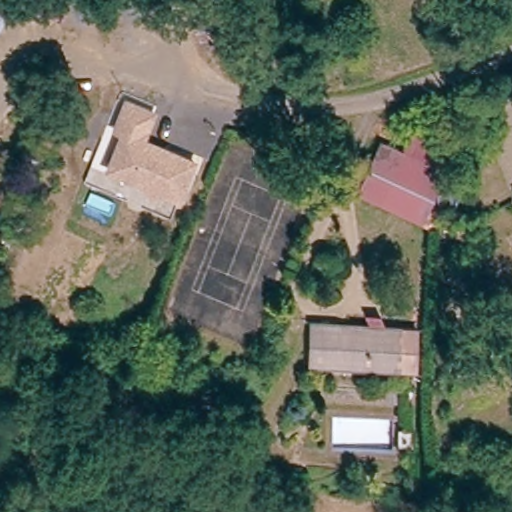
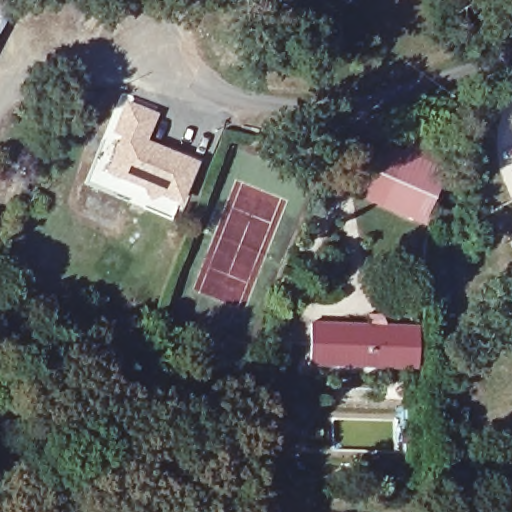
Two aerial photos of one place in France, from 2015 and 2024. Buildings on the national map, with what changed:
unchanged [(8,8),(0,22),(0,4),(8,8)]
unchanged [(158,110),(148,137),(152,138),(156,150),(165,153),(168,144),(200,156),(186,194),(167,187),(157,191),(153,181),(115,167),(128,131),(120,128),(130,99),(158,110)]
unchanged [(438,176),(415,222),(354,196),(377,147),(438,176)]
unchanged [(308,365),(307,329),(396,326),(398,361),(308,365)]

